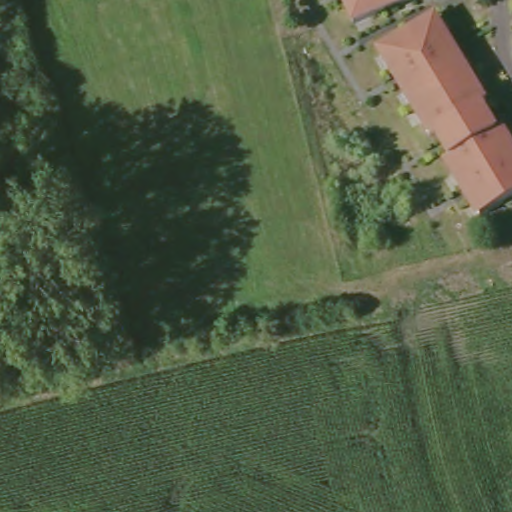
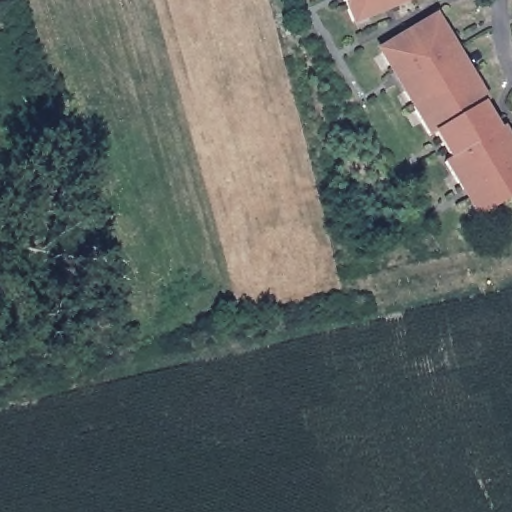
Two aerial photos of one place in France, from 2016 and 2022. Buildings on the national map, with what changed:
unchanged [(350,24),(341,0),(410,0),(350,24)]
unchanged [(465,76),(467,74),(484,103),(478,106),(494,132),(499,129),(512,152),(512,196),(477,218),(460,190),(458,192),(441,163),(447,160),(431,134),(426,137),(409,108),(410,107),(378,52),(432,20),(465,76)]

